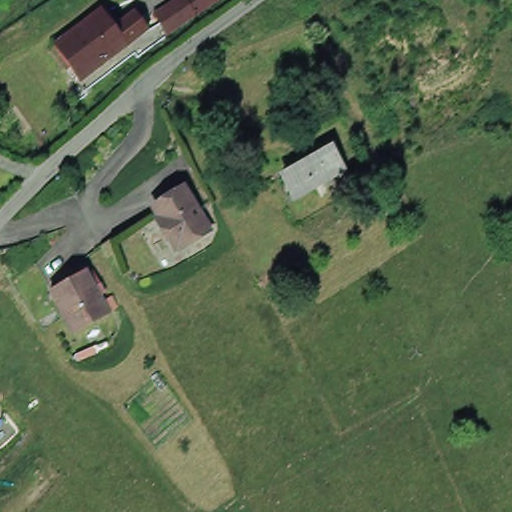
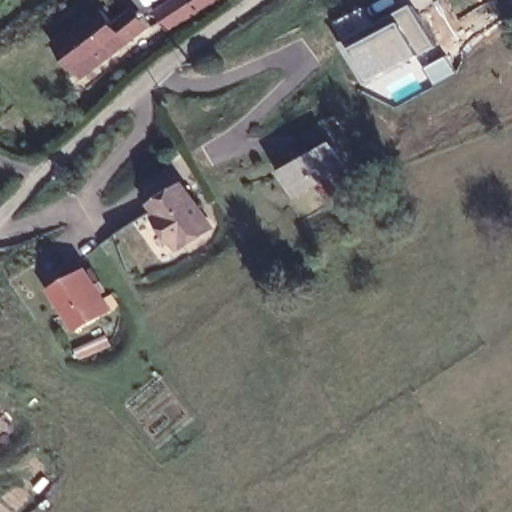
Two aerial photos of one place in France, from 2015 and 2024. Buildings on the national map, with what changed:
unchanged [(168,0),(203,0),(198,3),(170,23),(158,7),(168,0)]
unchanged [(113,19),(116,17),(136,13),(146,26),(127,40),(78,76),(53,40),(101,4),(113,19)]
new [(436,47),(422,54),(373,80),(363,84),(343,43),(414,5),(436,47)]
unchanged [(295,195),(283,174),(329,146),(342,167),(295,195)]
unchanged [(199,207),(205,220),(208,218),(209,221),(181,236),(178,237),(176,234),(173,236),(158,205),(161,203),(156,195),(159,194),(189,179),(203,205),(199,207)]
unchanged [(74,329),(50,287),(83,268),(86,273),(91,270),(103,291),(98,294),(107,311),(74,329)]

